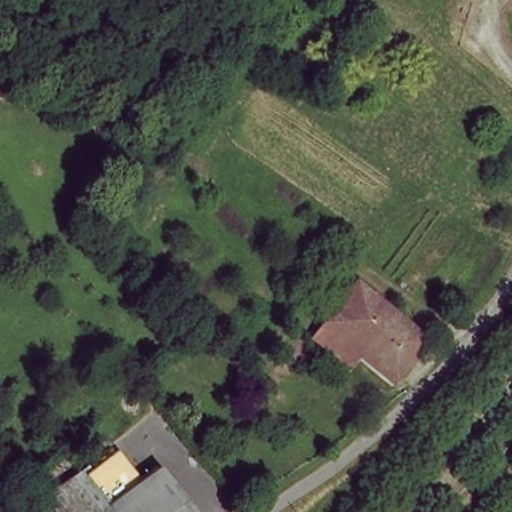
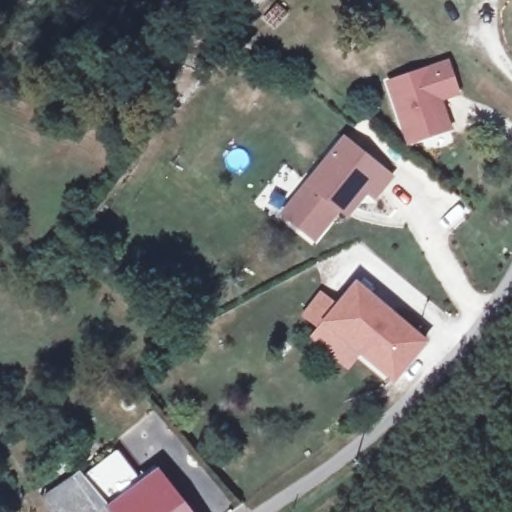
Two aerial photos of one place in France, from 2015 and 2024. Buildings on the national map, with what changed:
demolished [(508,9),(506,0),(512,0),(512,8),(508,9)]
new [(386,80),(449,59),(460,95),(443,101),(452,130),(406,145),(386,80)]
new [(279,214),(344,134),(396,177),(377,200),(369,194),(349,217),(341,211),(314,242),(279,214)]
unchanged [(326,336),(309,320),(323,305),(336,316),(367,282),(432,338),(400,375),(369,346),(354,362),(326,336)]
unchanged [(93,498),(140,468),(158,490),(178,512),(103,512),(93,498)]
unchanged [(103,512),(44,512),(39,507),(53,493),(69,485),(83,504),(93,498),(103,512)]

